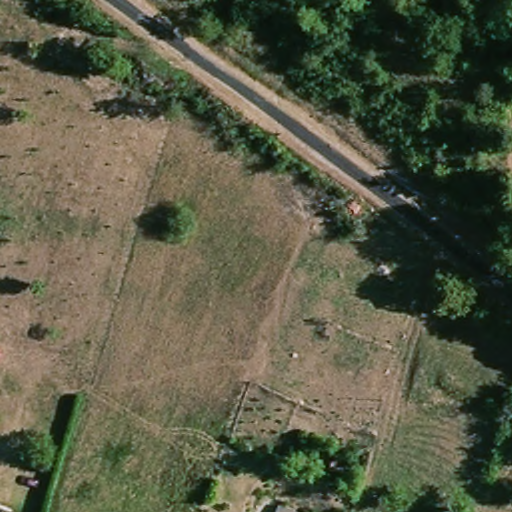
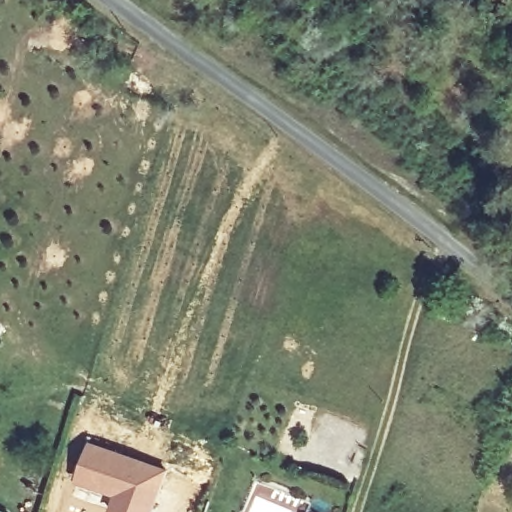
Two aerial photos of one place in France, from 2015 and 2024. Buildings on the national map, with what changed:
new [(88,439),(169,468),(154,512),(120,512),(109,509),(113,494),(74,479),(88,439)]
unchanged [(277,504),(296,512),(274,512),(277,504)]

